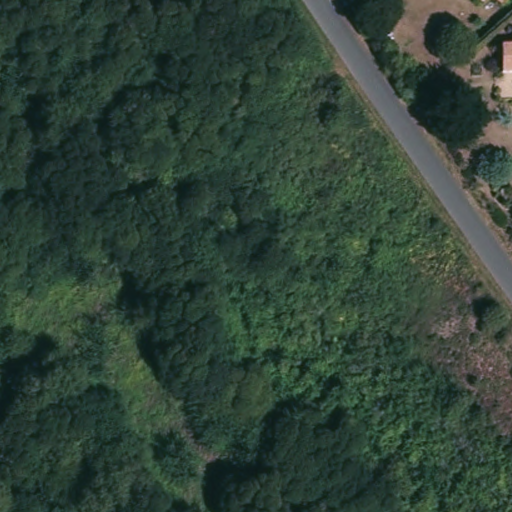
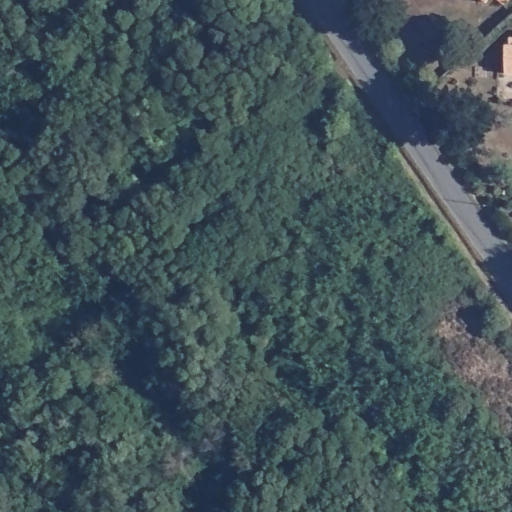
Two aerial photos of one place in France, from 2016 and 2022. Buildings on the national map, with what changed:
unchanged [(500,0),(509,0),(506,4),(500,0)]
unchanged [(512,36),(512,63),(505,64),(504,37),(512,36)]

